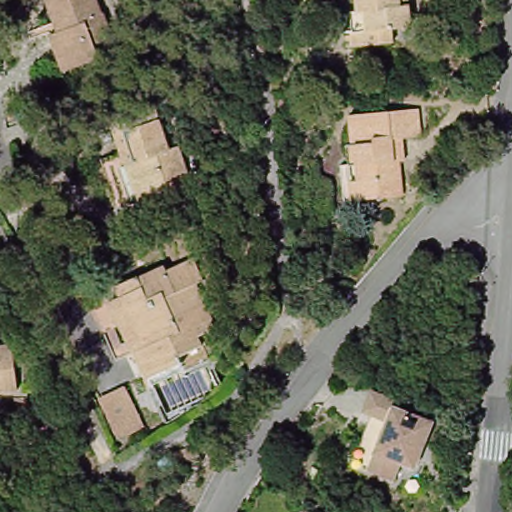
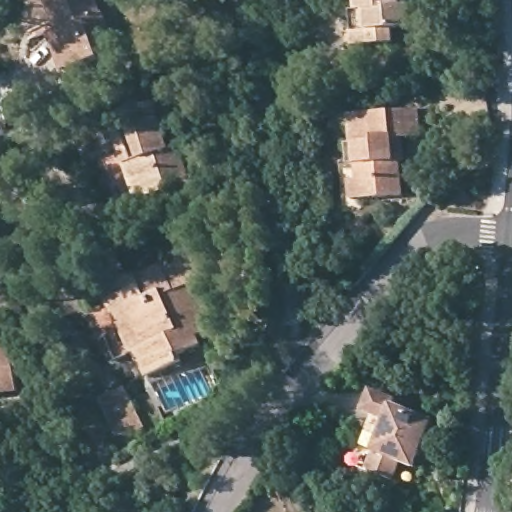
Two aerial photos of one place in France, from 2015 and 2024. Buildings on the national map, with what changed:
unchanged [(110,9),(119,34),(99,40),(105,54),(68,67),(55,30),(65,27),(54,0),(103,0),(107,10),(110,9)]
unchanged [(357,12),(356,0),(400,0),(400,6),(410,5),(412,28),(391,29),(393,45),(368,46),(354,47),(352,12),(357,12)]
unchanged [(175,151),(184,147),(196,185),(128,206),(112,159),(127,154),(115,117),(158,104),(175,151)]
unchanged [(344,196),(341,161),(350,160),(348,140),(354,140),(351,111),(421,104),(424,131),(405,132),(408,156),(401,156),(405,190),(344,196)]
unchanged [(114,297),(125,292),(120,282),(170,260),(173,266),(199,254),(209,275),(200,280),(221,322),(202,330),(213,355),(194,365),(191,357),(155,374),(142,346),(139,347),(114,297)]
unchanged [(321,301),(308,305),(301,285),(314,281),(321,301)]
unchanged [(13,341),(18,386),(0,388),(0,342),(13,341)]
unchanged [(232,355),(218,362),(214,355),(228,347),(232,355)]
unchanged [(150,423),(136,430),(119,427),(104,397),(130,385),(150,423)]
unchanged [(368,466),(375,448),(387,419),(362,409),(371,386),(397,396),(394,403),(432,417),(414,463),(400,457),(394,476),(368,466)]

